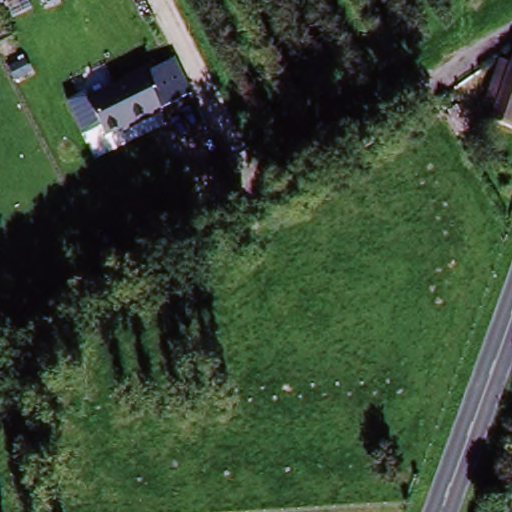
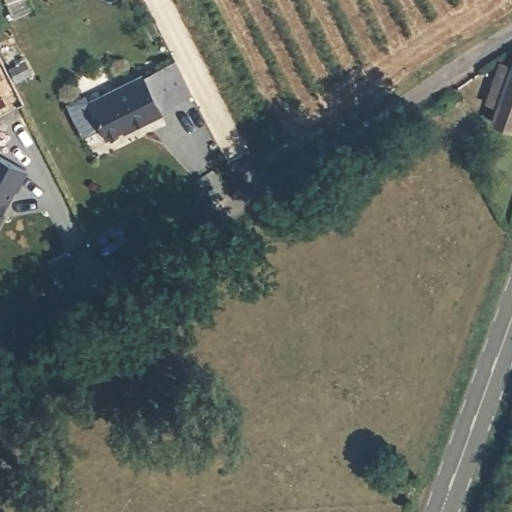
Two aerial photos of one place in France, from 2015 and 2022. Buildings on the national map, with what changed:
unchanged [(494,114),(501,97),(490,94),(504,57),(512,60),(512,119),(494,114)]
unchanged [(142,77),(158,117),(99,142),(83,104),(142,77)]
new [(0,219),(0,154),(28,169),(0,219)]

